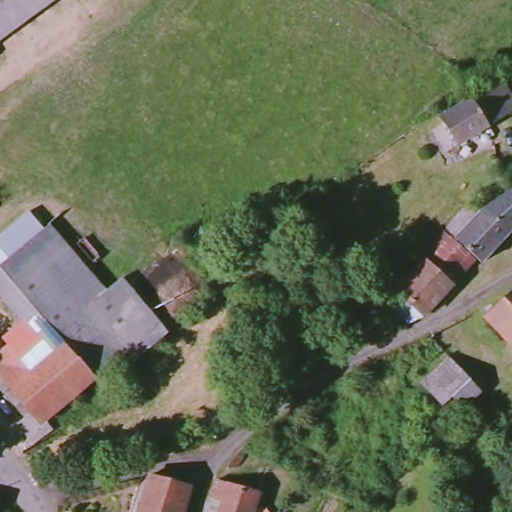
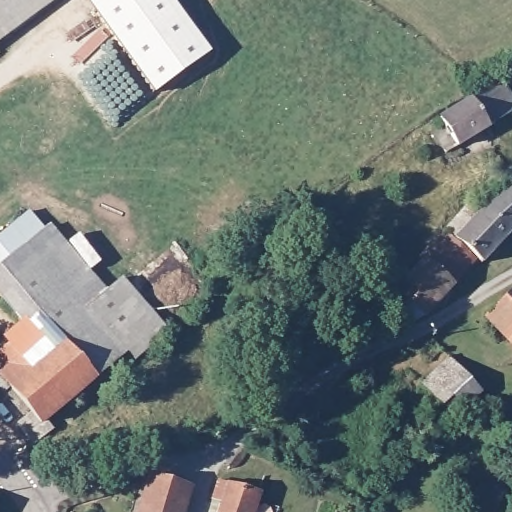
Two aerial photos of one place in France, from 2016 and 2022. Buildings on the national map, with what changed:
unchanged [(0,0),(39,0),(0,29),(0,0)]
new [(210,55),(155,96),(85,0),(171,0),(210,55)]
unchanged [(464,150),(445,119),(480,96),(508,79),(512,84),(512,120),(464,150)]
unchanged [(490,260),(486,256),(455,223),(477,200),(488,211),(512,197),(512,238),(490,260)]
unchanged [(1,273),(0,271),(0,236),(28,212),(45,231),(1,273)]
unchanged [(437,310),(420,323),(403,306),(415,295),(403,284),(417,268),(414,265),(455,223),(486,256),(437,310)]
unchanged [(111,310),(57,355),(0,295),(0,275),(52,225),(115,292),(105,301),(111,310)]
unchanged [(169,333),(143,352),(115,315),(111,310),(105,301),(115,292),(110,287),(122,277),(169,333)]
unchanged [(488,316),(512,294),(512,341),(488,316)]
unchanged [(55,435),(40,449),(24,428),(38,416),(17,391),(1,371),(26,353),(39,369),(41,372),(115,315),(145,355),(50,428),(55,435)]
unchanged [(57,355),(60,358),(41,372),(39,369),(26,353),(1,371),(18,390),(17,391),(38,416),(24,428),(21,431),(15,422),(22,416),(0,391),(0,361),(1,360),(0,357),(0,351),(6,345),(1,338),(25,321),(57,355)]
unchanged [(458,417),(432,378),(464,358),(474,373),(487,395),(463,413),(458,417)]
unchanged [(195,482),(187,512),(142,512),(153,472),(195,482)]
unchanged [(221,512),(231,491),(258,505),(255,512),(221,512)]

